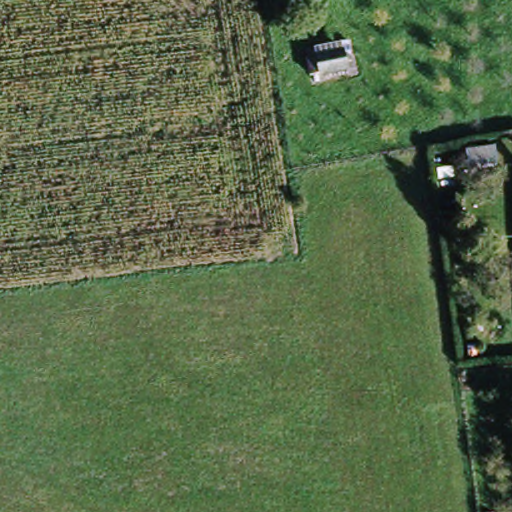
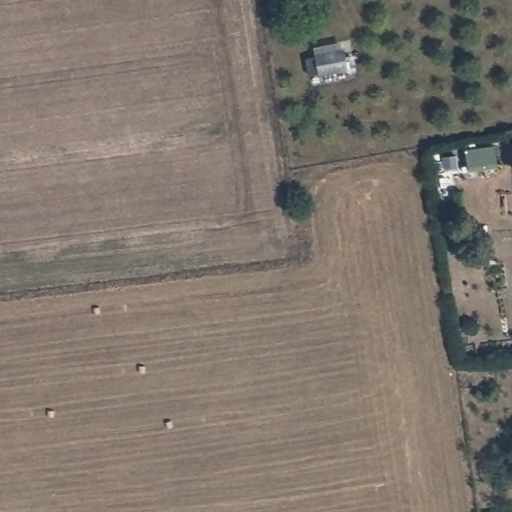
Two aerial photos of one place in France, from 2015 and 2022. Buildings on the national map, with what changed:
unchanged [(322,84),(320,62),(349,57),(353,80),(322,84)]
unchanged [(499,164),(466,171),(462,151),(498,146),(499,164)]

